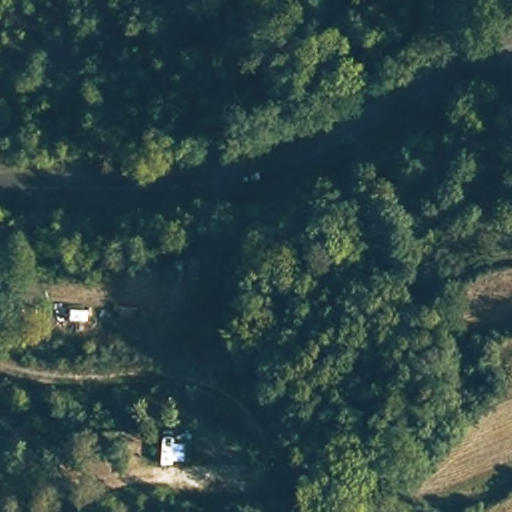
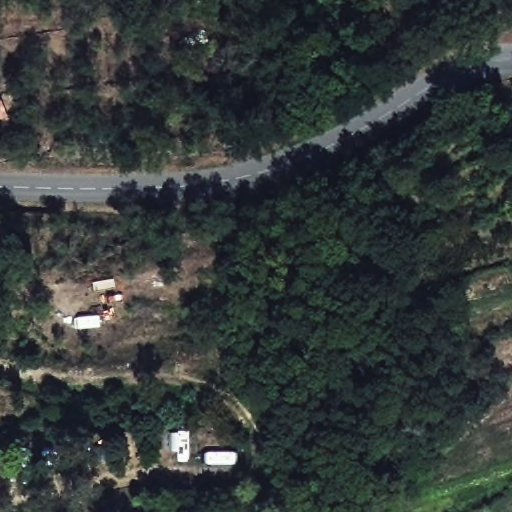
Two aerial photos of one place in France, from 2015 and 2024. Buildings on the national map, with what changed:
[]

